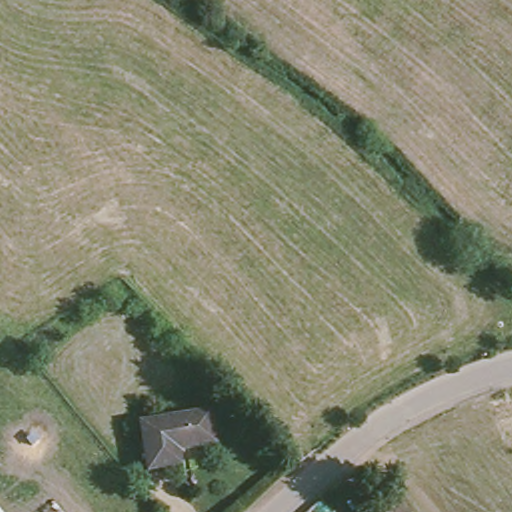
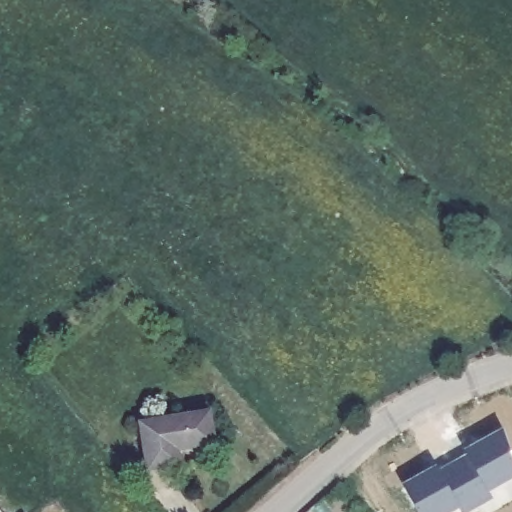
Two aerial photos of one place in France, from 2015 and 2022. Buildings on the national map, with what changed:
unchanged [(214,416),(217,450),(184,453),(185,471),(149,475),(142,422),(214,416)]
new [(480,444),(505,431),(512,452),(512,477),(488,491),(492,497),(477,506),(455,463),(469,456),(466,452),(480,444)]
new [(438,467),(440,472),(455,463),(477,506),(466,512),(461,512),(459,507),(449,512),(418,512),(404,487),(424,476),(438,467)]
unchanged [(4,512),(0,512),(0,507),(4,512)]

